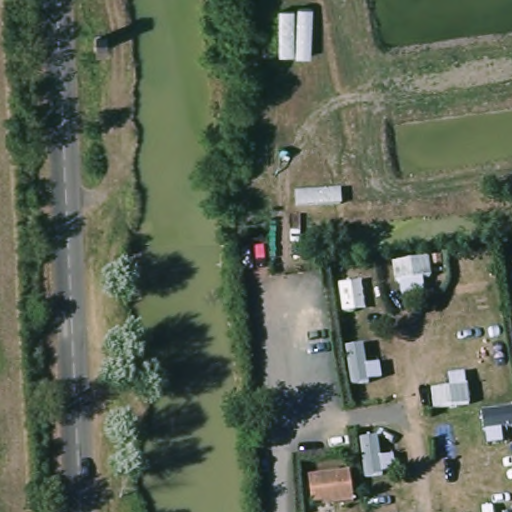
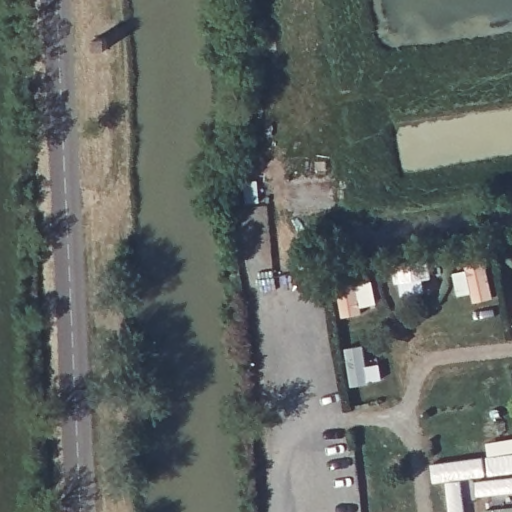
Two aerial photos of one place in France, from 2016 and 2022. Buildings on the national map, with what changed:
unchanged [(349,470),(353,501),(310,508),(307,475),(349,470)]

